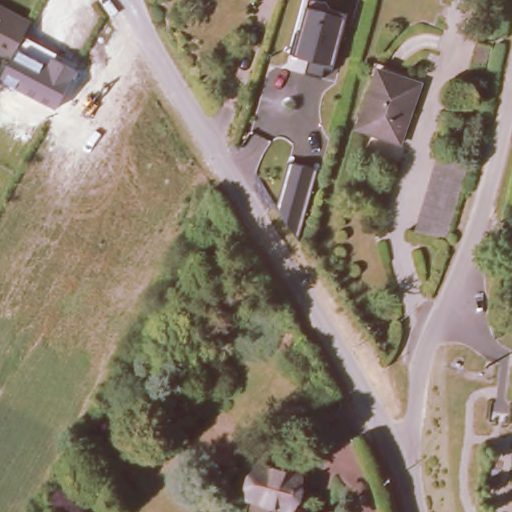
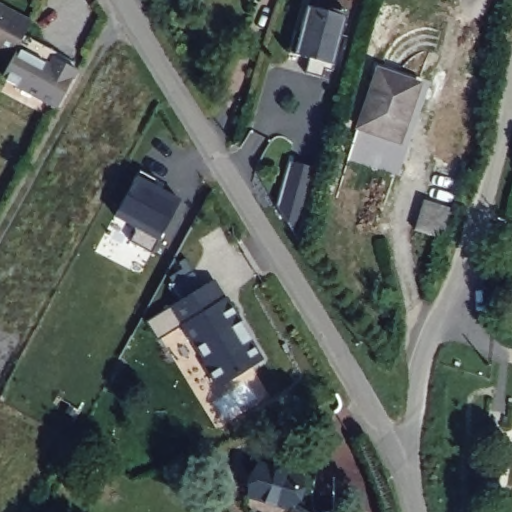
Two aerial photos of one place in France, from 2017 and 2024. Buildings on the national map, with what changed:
unchanged [(333,63),(331,71),(324,69),(322,75),(306,71),(310,57),(295,54),(291,53),(297,31),(300,31),(307,6),(309,0),(324,0),(330,8),(347,13),(333,63)]
unchanged [(3,3),(31,18),(12,55),(0,50),(0,2),(3,3)]
unchanged [(57,52),(55,58),(77,70),(57,109),(0,76),(12,55),(22,35),(57,52)]
unchanged [(475,43),(488,46),(482,71),(470,68),(475,43)]
unchanged [(378,68),(420,83),(400,141),(357,127),(378,68)]
unchanged [(317,169),(299,238),(277,205),(290,162),(317,169)]
unchanged [(414,238),(437,163),(467,172),(443,247),(414,238)]
new [(155,188),(181,202),(152,255),(130,243),(135,233),(133,228),(115,218),(141,172),(159,182),(155,188)]
new [(225,301),(250,342),(248,344),(260,364),(217,389),(204,367),(206,366),(183,328),(158,343),(147,324),(212,284),(223,302),(225,301)]
unchanged [(258,474),(300,485),(292,511),(293,512),(270,512),(249,506),(258,474)]

